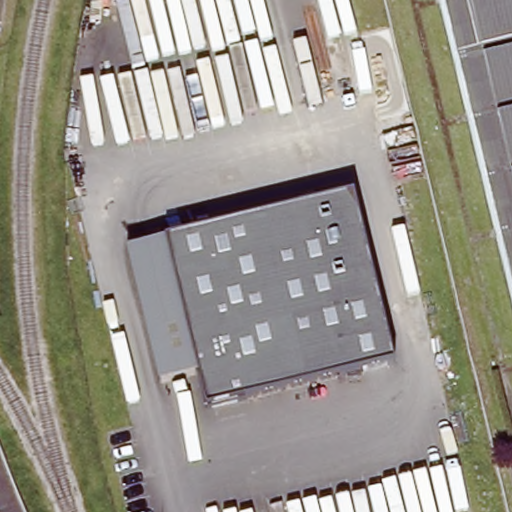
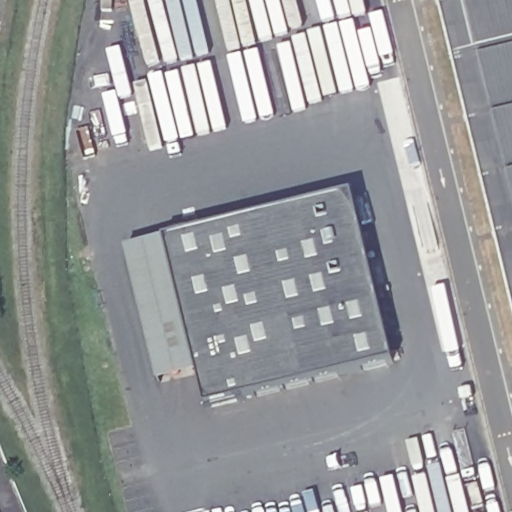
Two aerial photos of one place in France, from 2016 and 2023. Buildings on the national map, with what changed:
unchanged [(437,0),(512,0),(512,307),(442,23),(437,0)]
unchanged [(350,194),(392,360),(205,407),(196,374),(157,384),(125,250),(350,194)]

